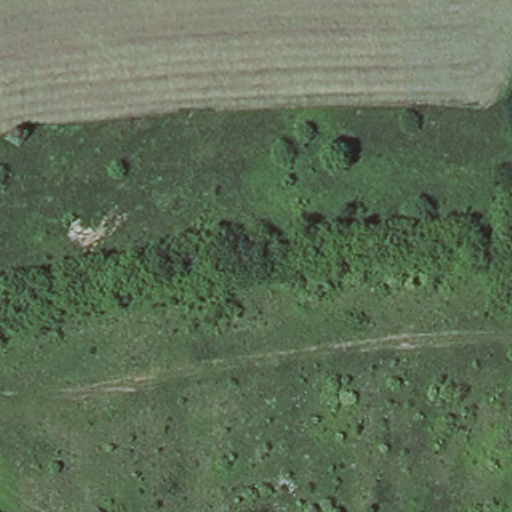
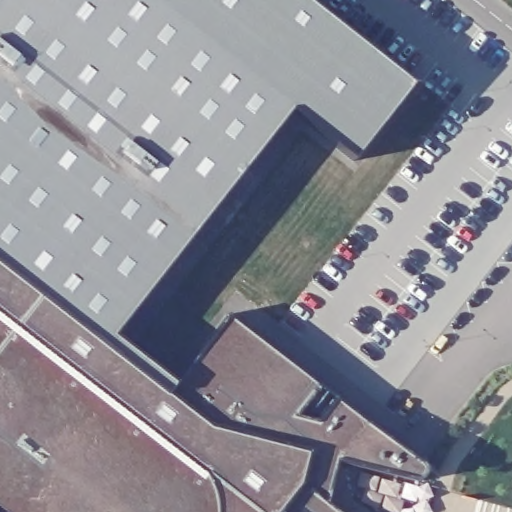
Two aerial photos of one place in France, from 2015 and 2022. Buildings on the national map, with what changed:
new [(417,80),(359,153),(292,101),(113,326),(114,334),(171,378),(166,386),(163,389),(171,394),(230,316),(366,422),(421,466),(423,470),(423,475),(421,479),(415,482),(339,463),(327,504),(337,512),(0,512),(0,0),(314,0),(417,80)]

